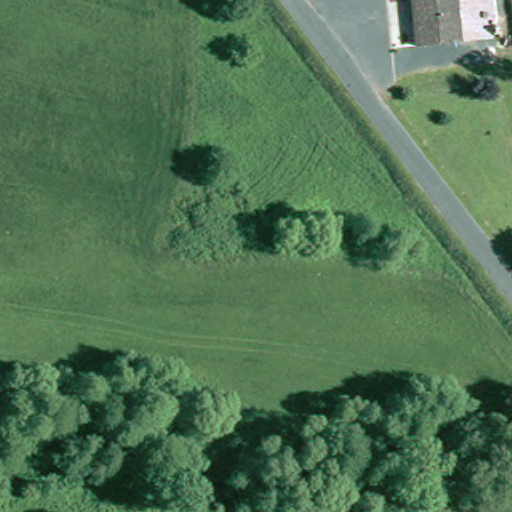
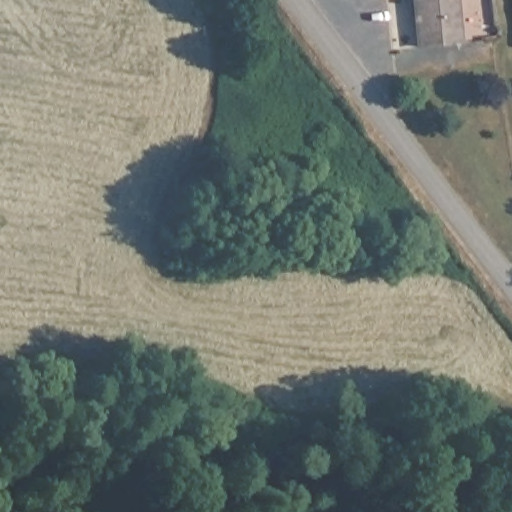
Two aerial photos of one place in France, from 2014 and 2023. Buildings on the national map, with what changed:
unchanged [(414,3),(414,0),(453,0),(456,18),(458,48),(418,51),(414,3)]

